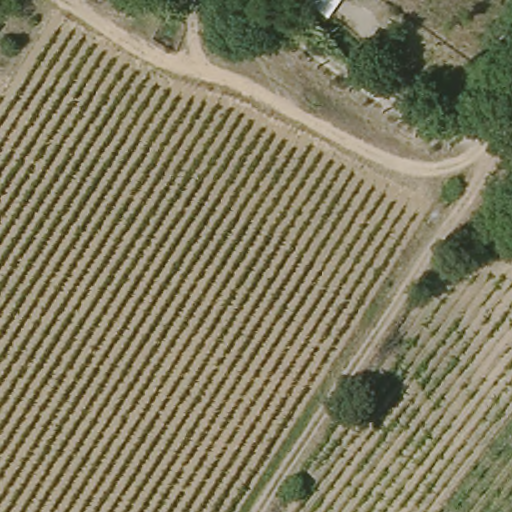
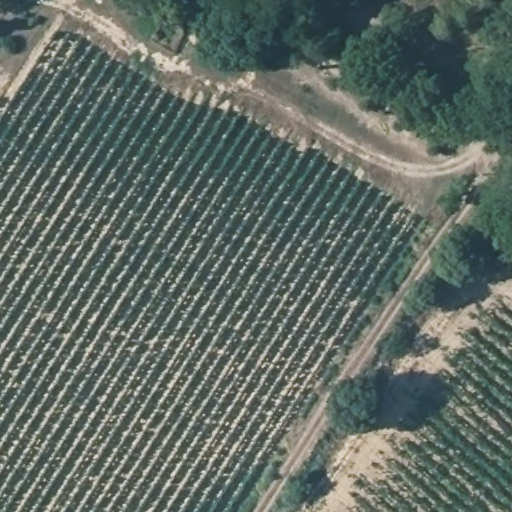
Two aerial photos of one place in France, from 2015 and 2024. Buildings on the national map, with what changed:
unchanged [(0,44),(0,38),(2,40),(0,44)]

